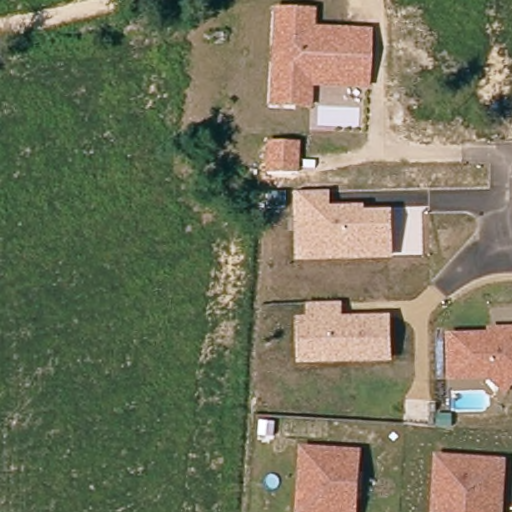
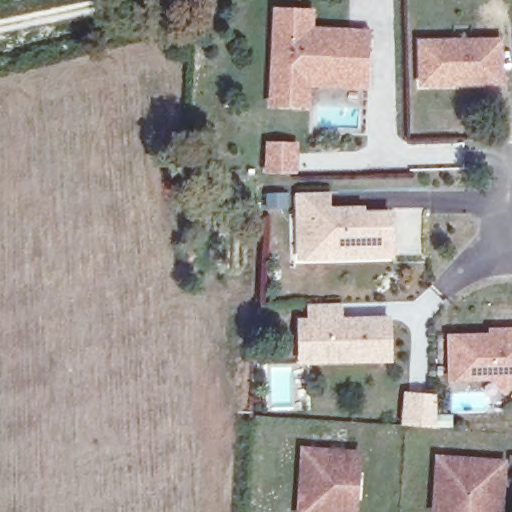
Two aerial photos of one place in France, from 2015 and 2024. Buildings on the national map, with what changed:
unchanged [(267,105),(274,6),(315,9),(314,26),(371,30),(368,91),(312,88),(312,109),(267,105)]
new [(503,38),(504,86),(419,87),(418,40),(503,38)]
unchanged [(263,172),(265,140),(298,143),(298,174),(263,172)]
unchanged [(296,262),(293,193),(331,192),(332,205),(366,206),(367,210),(394,211),(394,260),(296,262)]
unchanged [(298,364),(296,318),(306,317),(305,304),(343,304),(344,316),(392,315),(392,363),(298,364)]
unchanged [(447,333),(488,333),(488,328),(512,328),(512,387),(505,395),(490,381),(447,381),(447,333)]
new [(416,404),(446,407),(447,432),(413,431),(416,404)]
unchanged [(355,512),(300,512),(304,453),(358,457),(357,478),(356,500),(355,512)]
unchanged [(438,462),(504,465),(501,512),(435,512),(438,462)]

